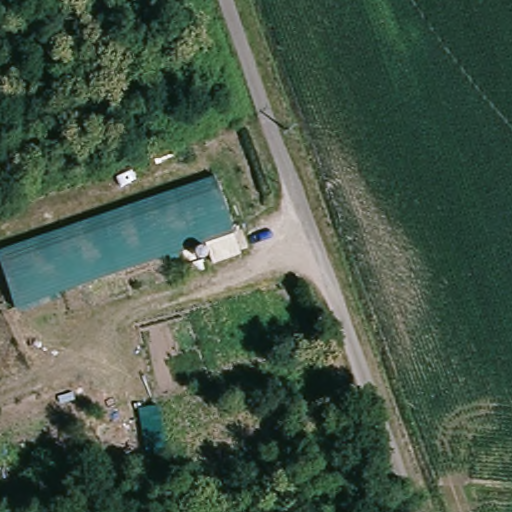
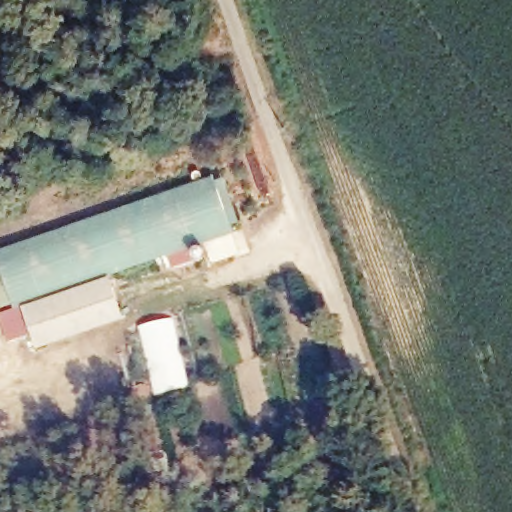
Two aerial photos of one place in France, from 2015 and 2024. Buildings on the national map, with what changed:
unchanged [(249,250),(218,262),(209,237),(21,306),(0,250),(0,247),(218,167),(249,250)]
new [(35,346),(21,306),(108,274),(122,318),(35,346)]
new [(188,387),(154,396),(137,327),(171,320),(188,387)]

